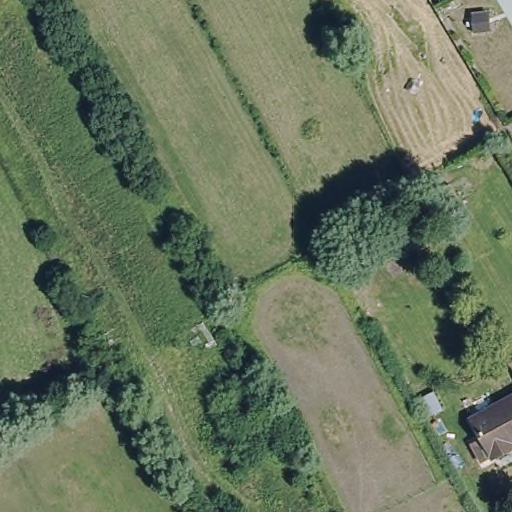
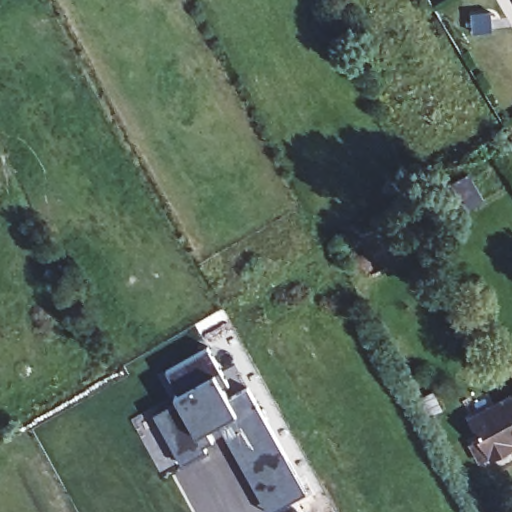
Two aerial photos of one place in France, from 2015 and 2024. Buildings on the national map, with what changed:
new [(229,380),(221,383),(228,395),(248,384),(306,491),(271,510),(238,454),(256,443),(238,410),(224,408),(206,376),(178,392),(166,369),(208,344),(229,380)]
unchanged [(512,361),(512,371),(508,363),(512,361)]
new [(206,428),(213,440),(204,445),(206,449),(184,461),(157,413),(178,401),(174,393),(206,376),(224,408),(238,410),(256,443),(238,454),(218,421),(206,428)]
unchanged [(511,447),(480,463),(469,444),(478,439),(467,418),(512,394),(512,440),(508,442),(511,447)]

